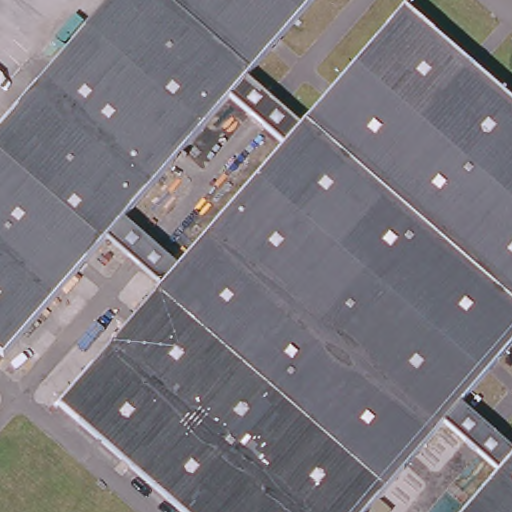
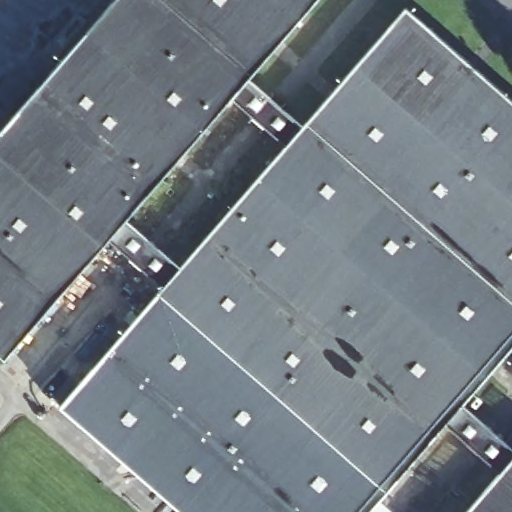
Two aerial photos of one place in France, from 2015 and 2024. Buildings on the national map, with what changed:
unchanged [(242,72),(227,90),(119,215),(102,234),(0,350),(0,125),(108,0),(306,0),(242,72)]
unchanged [(462,401),(446,419),(366,512),(185,512),(57,401),(159,284),(175,265),(284,141),(300,122),(402,4),(512,99),(512,342),(462,401)]
unchanged [(245,75),(300,122),(284,141),(262,122),(227,90),(242,72),(245,75)]
unchanged [(175,265),(159,284),(102,234),(119,215),(175,265)]
unchanged [(512,446),(512,455),(500,468),(446,419),(462,401),(512,446)]
unchanged [(512,455),(512,512),(462,512),(500,468),(512,455)]

